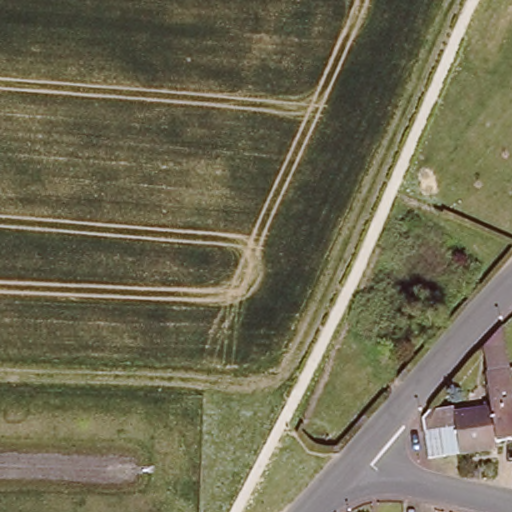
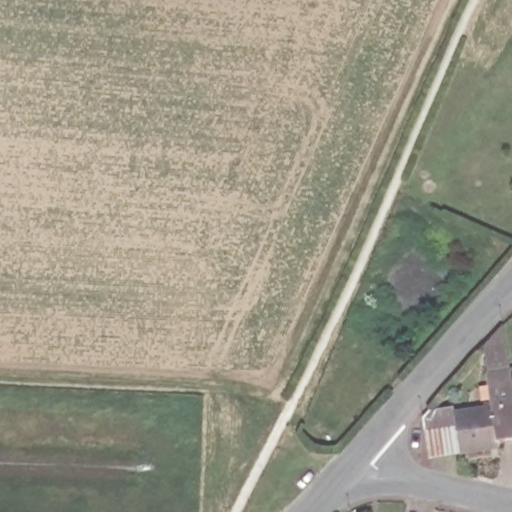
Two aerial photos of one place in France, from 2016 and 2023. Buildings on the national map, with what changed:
unchanged [(427,437),(444,434),(457,432),(455,417),(494,411),(486,356),(507,331),(512,374),(512,445),(492,448),(494,453),(464,458),(447,460),(431,463),(427,437)]

